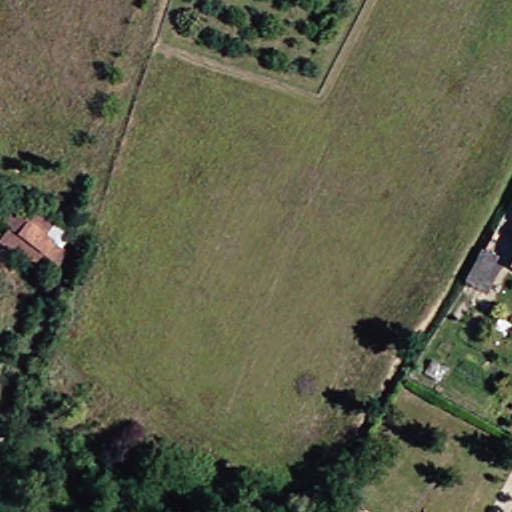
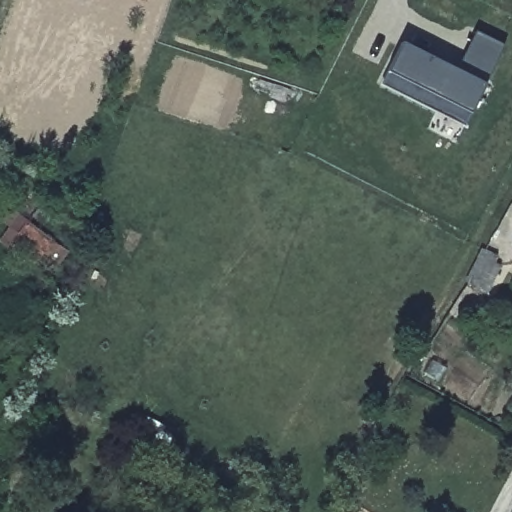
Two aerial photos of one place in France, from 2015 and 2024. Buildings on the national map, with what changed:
new [(143,0),(148,0),(147,1),(143,0)]
new [(457,71),(476,34),(503,46),(463,126),(382,85),(402,44),(457,71)]
unchanged [(7,249),(10,242),(0,239),(0,223),(61,243),(56,257),(26,247),(24,254),(7,249)]
unchanged [(512,264),(512,265),(511,265),(512,264)]

